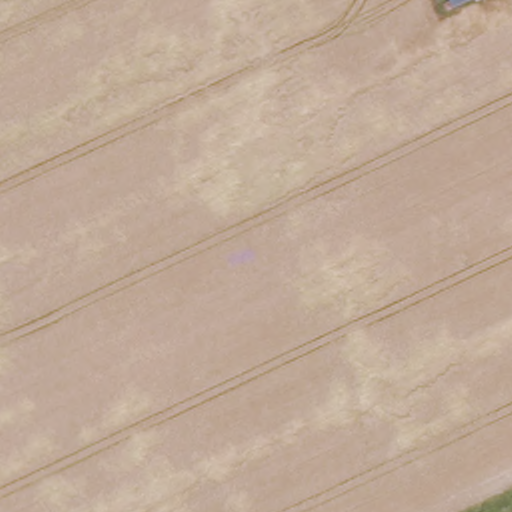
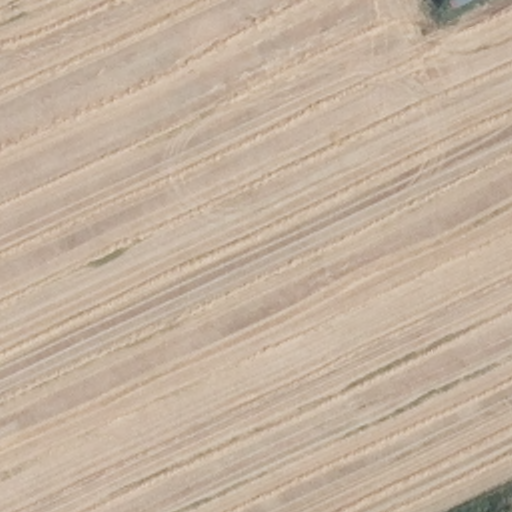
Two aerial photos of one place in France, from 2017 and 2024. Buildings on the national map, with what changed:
unchanged [(439,5),(447,0),(465,0),(443,12),(439,5)]

